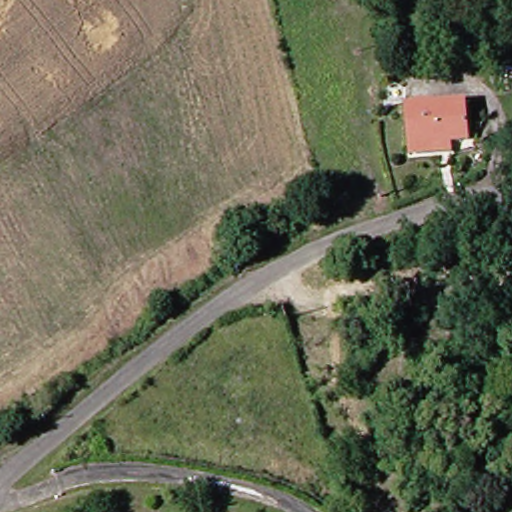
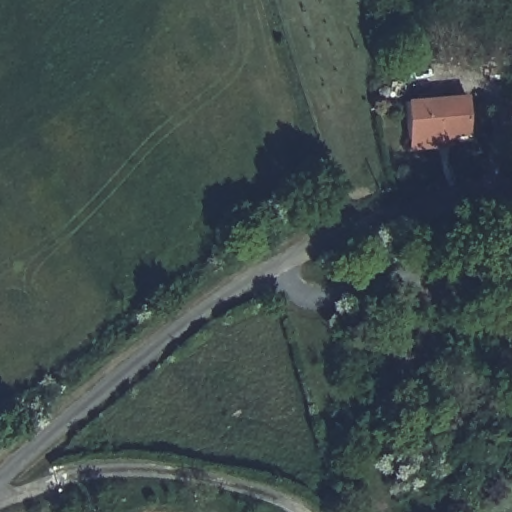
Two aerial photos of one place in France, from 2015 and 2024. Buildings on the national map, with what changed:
unchanged [(412,102),(472,100),(474,138),(454,139),(454,148),(414,150),(412,102)]

